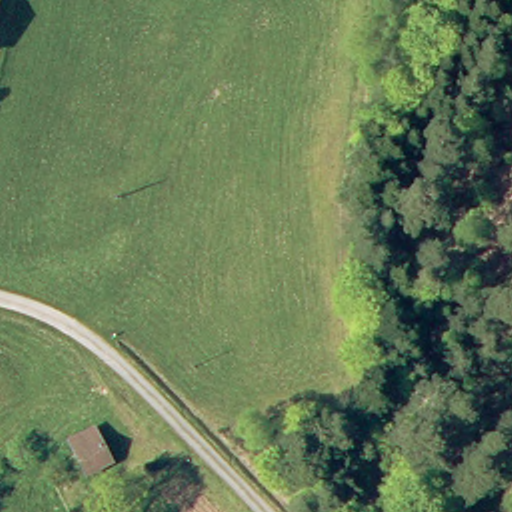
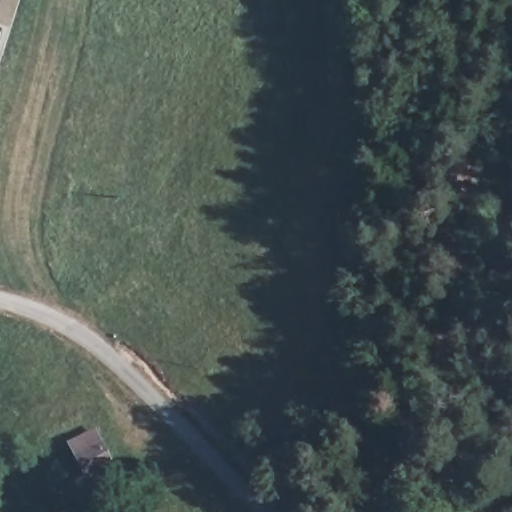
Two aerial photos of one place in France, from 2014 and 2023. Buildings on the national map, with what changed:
unchanged [(0,0),(2,0),(0,5),(0,0)]
unchanged [(72,446),(99,437),(108,464),(84,472),(72,446)]

